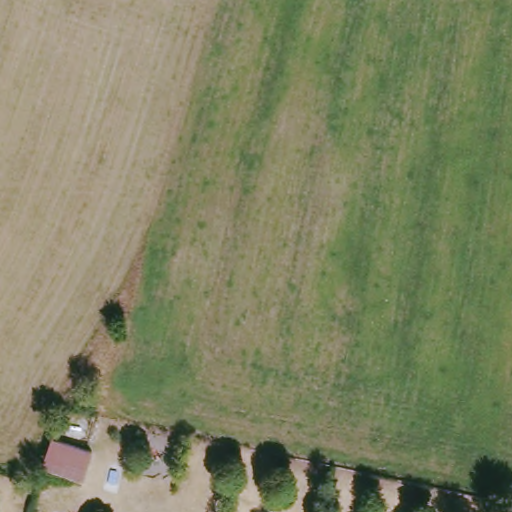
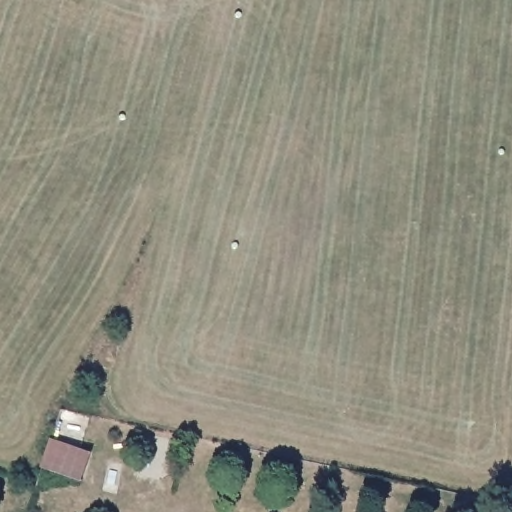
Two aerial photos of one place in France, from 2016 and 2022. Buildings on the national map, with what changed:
unchanged [(52,438),(92,452),(82,482),(43,467),(52,438)]

